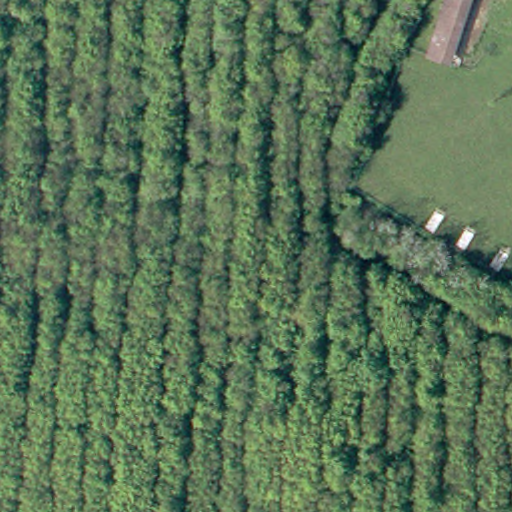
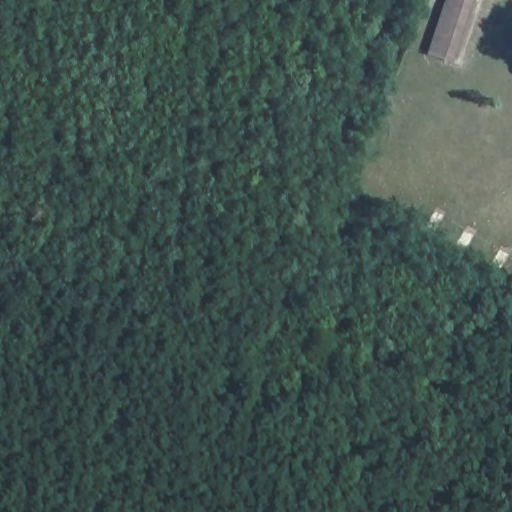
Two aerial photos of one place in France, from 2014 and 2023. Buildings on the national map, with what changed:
unchanged [(425,54),(443,0),(460,0),(441,59),(425,54)]
unchanged [(441,59),(460,0),(476,0),(455,64),(441,59)]

